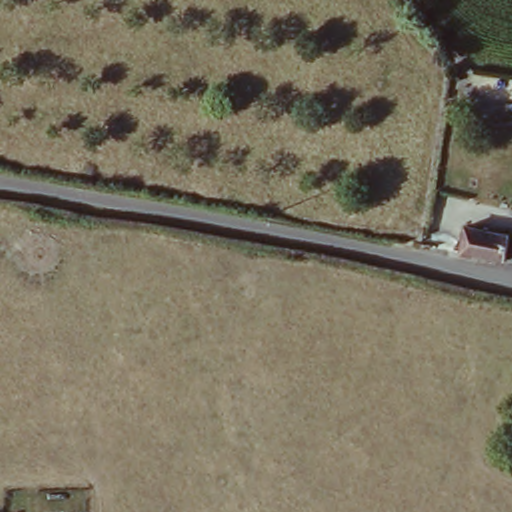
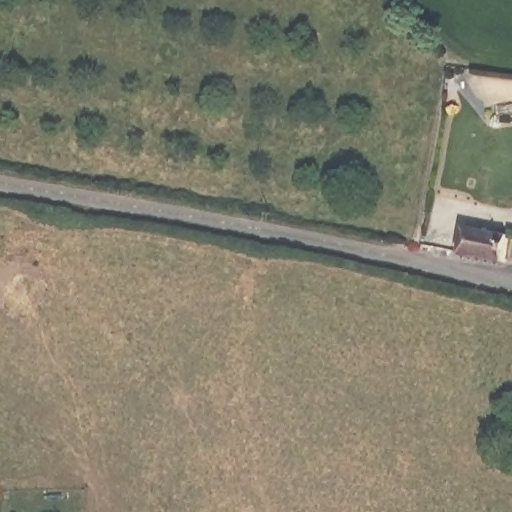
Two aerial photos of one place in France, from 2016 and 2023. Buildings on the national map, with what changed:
unchanged [(458,230),(509,239),(503,266),(453,258),(458,230)]

